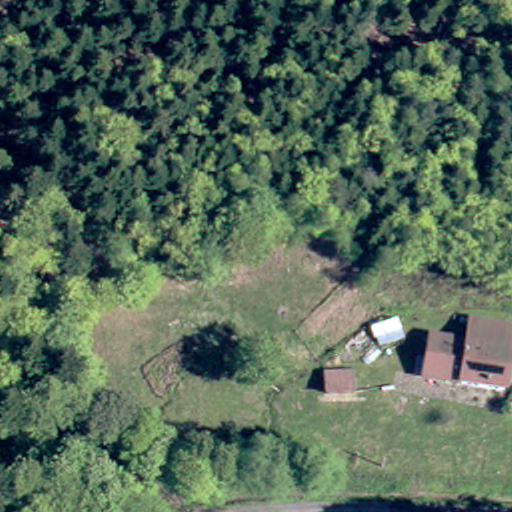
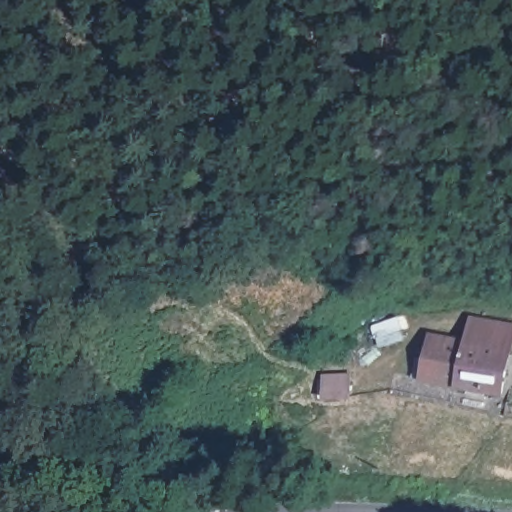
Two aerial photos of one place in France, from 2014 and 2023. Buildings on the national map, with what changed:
unchanged [(445,335),(481,342),(486,320),(512,325),(512,395),(438,380),(445,335)]
unchanged [(328,380),(355,376),(359,400),(332,405),(328,380)]

